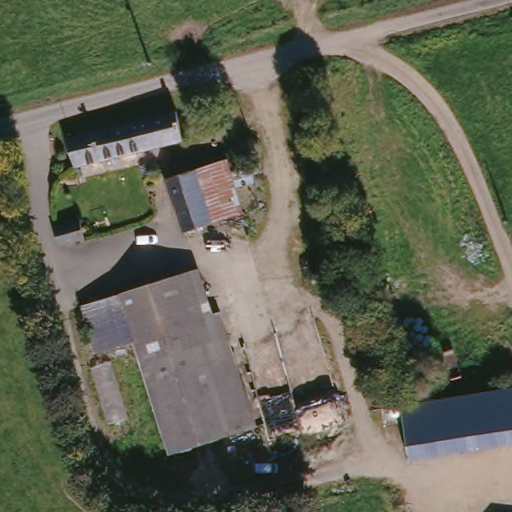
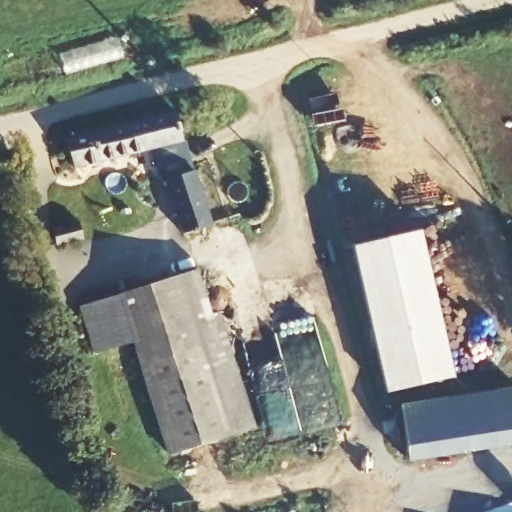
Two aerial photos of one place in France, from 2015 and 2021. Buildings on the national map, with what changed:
unchanged [(181,143),(72,170),(65,138),(173,114),(181,143)]
unchanged [(221,167),(236,225),(181,242),(163,186),(221,167)]
unchanged [(78,249),(51,255),(46,236),(73,230),(78,249)]
new [(353,247),(422,231),(454,377),(386,391),(353,247)]
unchanged [(195,277),(243,432),(167,455),(134,347),(119,298),(195,277)]
unchanged [(134,347),(94,357),(80,308),(119,298),(134,347)]
demolished [(512,331),(467,346),(457,320),(512,304),(512,331)]
unchanged [(512,388),(512,446),(410,461),(401,405),(512,388)]

